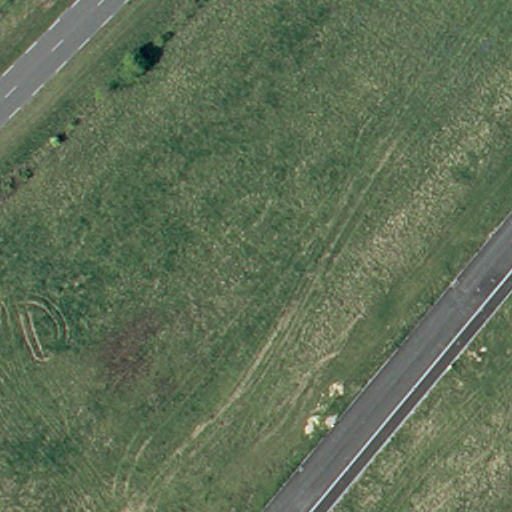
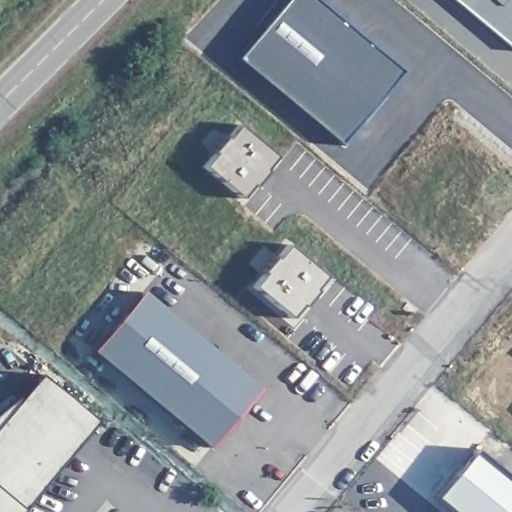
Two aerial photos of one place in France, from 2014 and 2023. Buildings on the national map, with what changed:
new [(235,58),(281,0),(318,0),(404,69),(343,145),(235,58)]
new [(453,0),(512,0),(512,49),(453,0)]
new [(204,169),(215,155),(212,154),(226,138),(228,139),(239,126),(277,158),(267,171),(269,173),(255,189),(253,187),(242,200),(204,169)]
new [(327,278),(316,290),(318,292),(305,309),(302,307),(292,319),(254,288),(264,274),(262,273),(275,257),(277,259),(288,245),(327,278)]
new [(260,392),(210,449),(95,352),(144,294),(260,392)]
new [(0,414),(15,402),(18,403),(40,377),(95,423),(20,512),(0,512),(0,414)]
new [(434,499),(475,450),(512,480),(512,512),(450,512),(434,499)]

